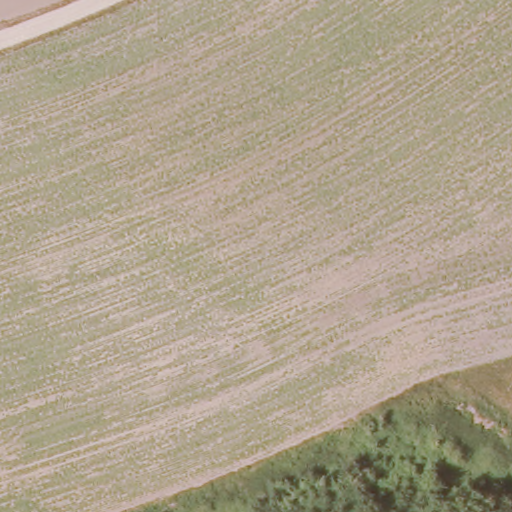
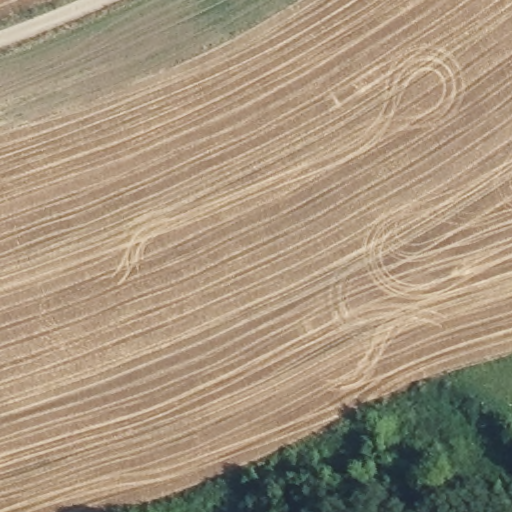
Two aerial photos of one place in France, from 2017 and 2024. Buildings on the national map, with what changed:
[]

